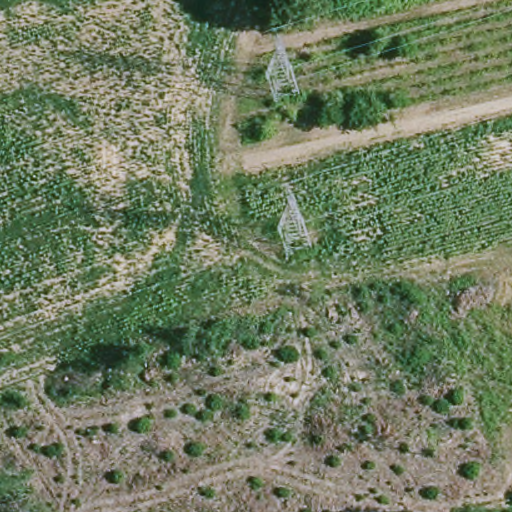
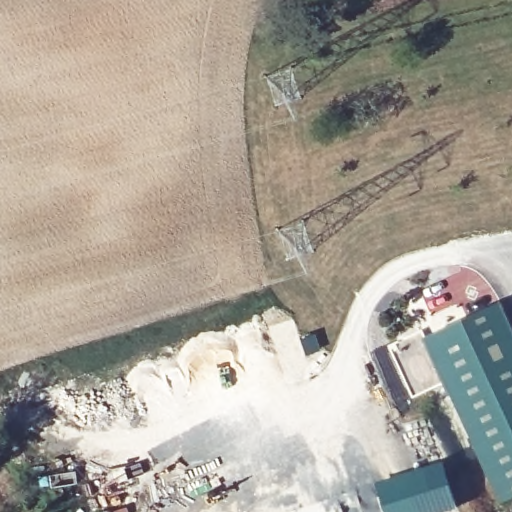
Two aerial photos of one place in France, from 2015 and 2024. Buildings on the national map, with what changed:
new [(512,499),(500,504),(424,342),(503,305),(512,326),(512,499)]
new [(457,510),(451,512),(385,512),(375,484),(443,460),(457,510)]

